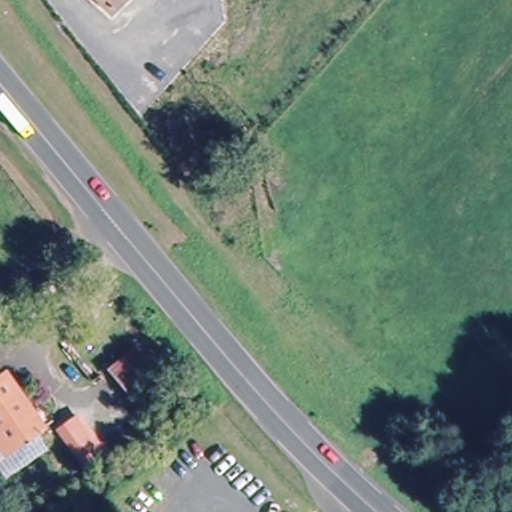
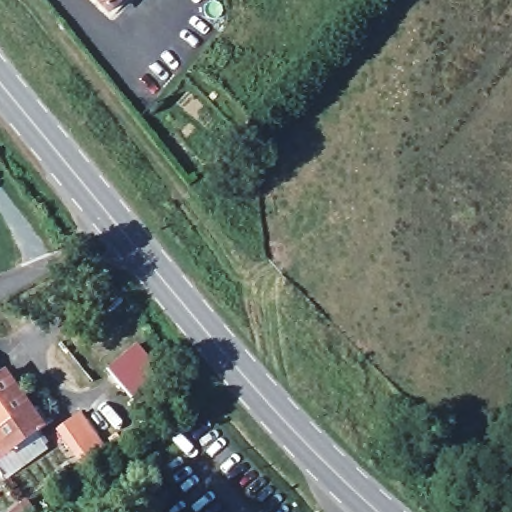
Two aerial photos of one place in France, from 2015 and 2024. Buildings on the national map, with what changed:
unchanged [(97,0),(124,0),(111,14),(97,0)]
unchanged [(129,343),(152,374),(122,397),(99,367),(129,343)]
unchanged [(4,370),(42,425),(5,451),(0,444),(0,372),(4,370)]
unchanged [(2,477),(0,479),(0,474),(2,477)]
unchanged [(36,512),(17,512),(30,502),(36,512)]

